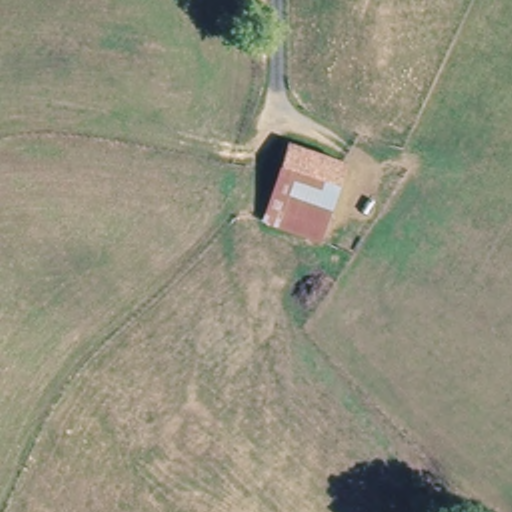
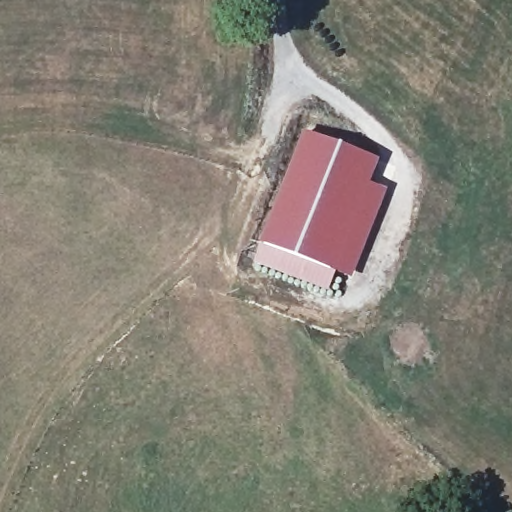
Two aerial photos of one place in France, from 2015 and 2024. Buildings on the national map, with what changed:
new [(371,184),(389,192),(353,280),(337,274),(329,294),(254,263),(262,243),(304,130),(381,160),(371,184)]
demolished [(288,142),(341,161),(336,180),(280,164),(288,142)]

